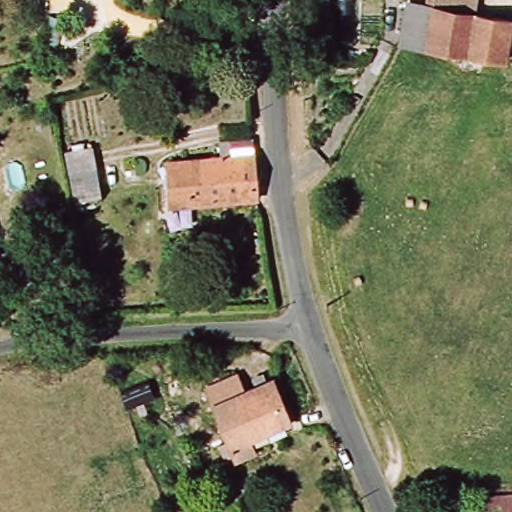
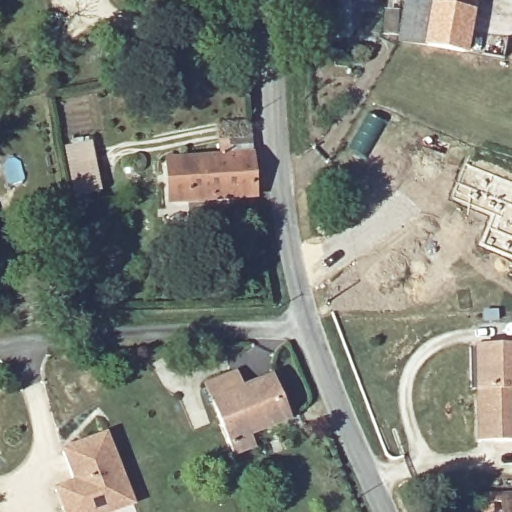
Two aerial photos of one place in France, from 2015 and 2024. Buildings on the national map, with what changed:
unchanged [(438,0),(477,0),(475,14),(512,20),(512,32),(506,60),(431,48),(436,6),(438,0)]
unchanged [(409,2),(436,6),(431,48),(402,43),(409,2)]
unchanged [(168,202),(167,160),(169,160),(187,159),(216,159),(218,142),(250,141),(256,199),(188,202),(170,202),(168,202)]
unchanged [(75,199),(68,161),(65,147),(91,142),(94,155),(102,195),(75,199)]
new [(476,392),(469,392),(468,351),(475,350),(512,349),(512,443),(477,443),(476,392)]
unchanged [(242,377),(248,393),(275,386),(286,428),(248,440),(252,452),(230,457),(209,386),(242,377)]
new [(127,502),(102,512),(76,512),(65,485),(70,483),(58,452),(101,435),(127,502)]
new [(76,512),(59,512),(51,491),(65,485),(76,512)]
unchanged [(479,505),(478,492),(512,493),(512,512),(502,512),(501,506),(479,505)]
new [(131,512),(102,512),(127,502),(131,512)]

